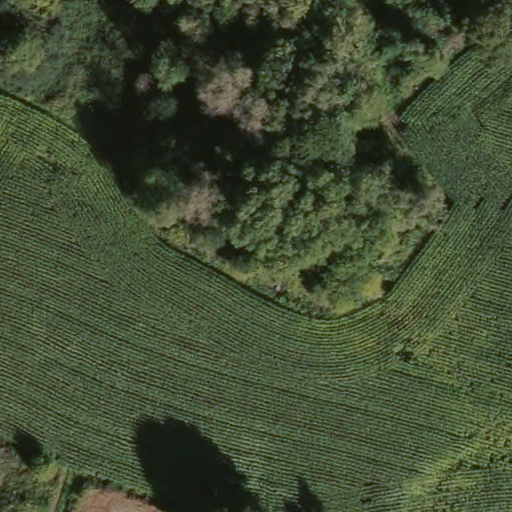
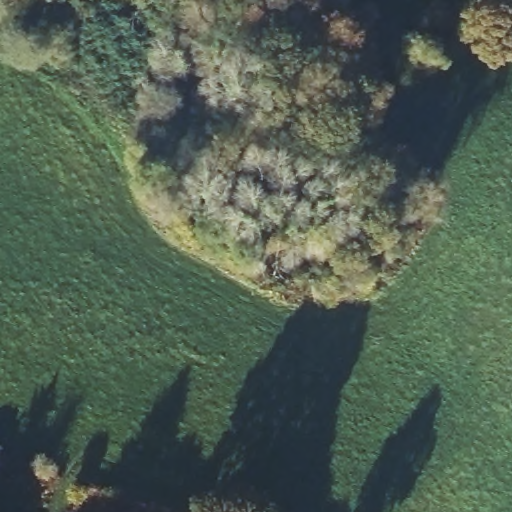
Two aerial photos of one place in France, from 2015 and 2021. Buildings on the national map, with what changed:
[]

